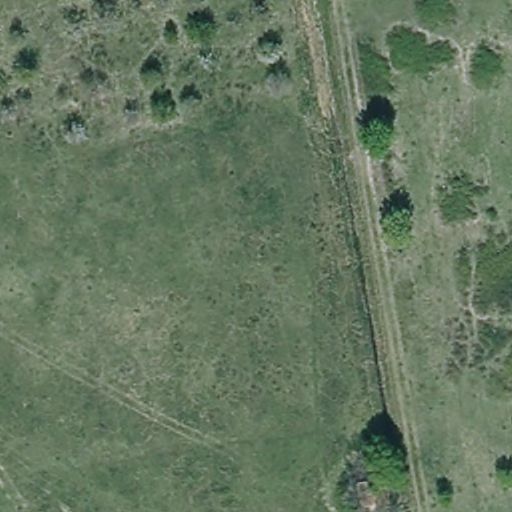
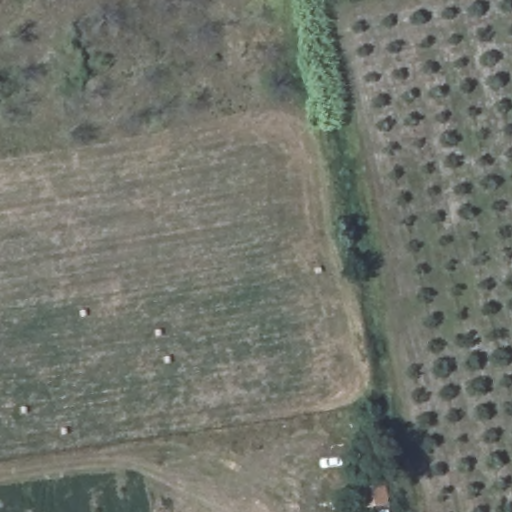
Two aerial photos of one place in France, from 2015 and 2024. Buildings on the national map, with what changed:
unchanged [(386,477),(389,502),(357,506),(354,481),(386,477)]

